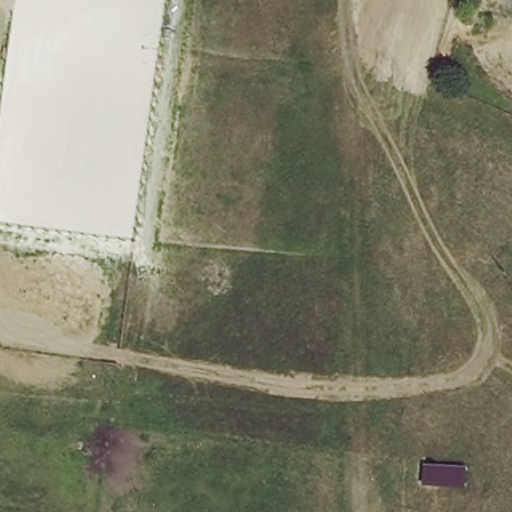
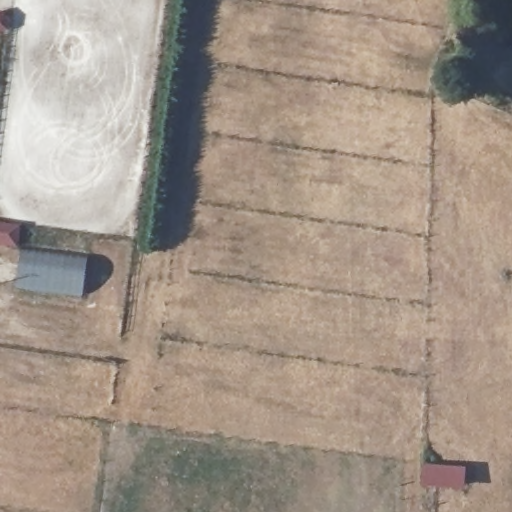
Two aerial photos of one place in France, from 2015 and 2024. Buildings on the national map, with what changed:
new [(88,254),(83,297),(16,288),(22,245),(88,254)]

